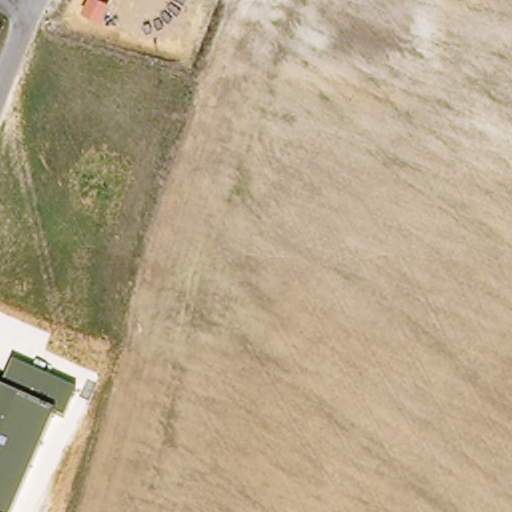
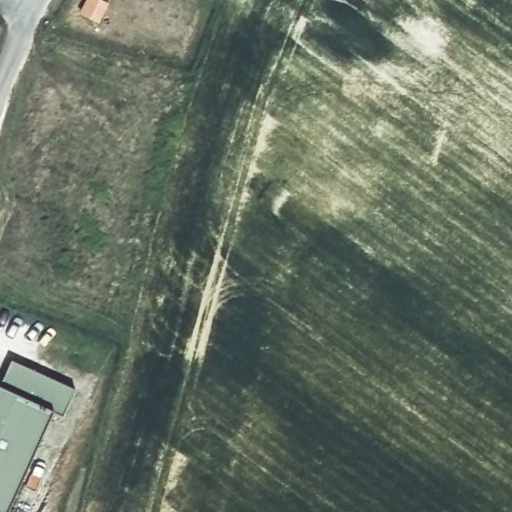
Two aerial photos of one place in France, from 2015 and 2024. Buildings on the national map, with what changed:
unchanged [(65,417),(56,413),(12,512),(0,512),(0,387),(11,361),(76,390),(65,417)]

